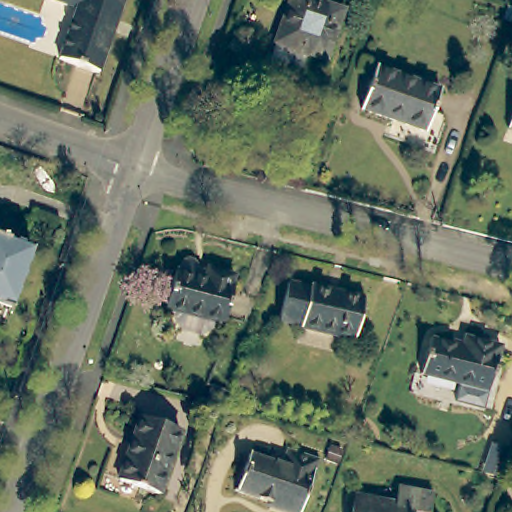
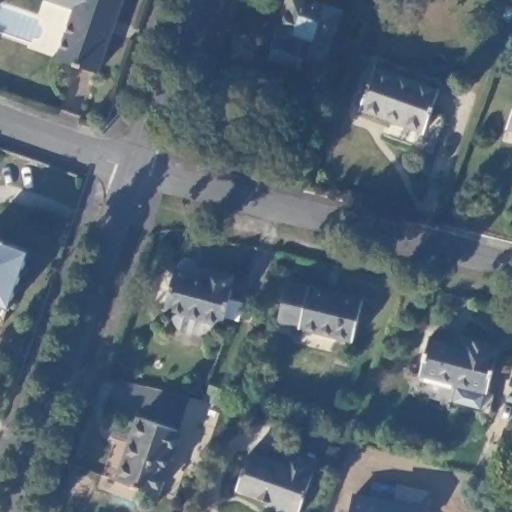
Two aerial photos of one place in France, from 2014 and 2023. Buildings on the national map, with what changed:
unchanged [(121,0),(96,75),(56,61),(73,9),(48,0),(121,0)]
unchanged [(287,0),(310,0),(344,12),(326,64),(306,56),(301,71),(268,59),(273,45),(271,43),(287,0)]
unchanged [(376,66),(440,90),(425,133),(361,110),(376,66)]
unchanged [(512,109),(512,132),(504,129),(512,109)]
unchanged [(32,249),(10,310),(0,306),(0,237),(32,249)]
unchanged [(221,318),(219,322),(216,321),(211,325),(199,332),(180,326),(172,314),(172,310),(166,309),(166,301),(178,259),(180,259),(184,253),(191,253),(193,255),(195,257),(196,260),(234,271),(231,280),(234,281),(224,319),(221,318)]
unchanged [(304,288),(304,286),(358,299),(348,341),(295,328),(296,326),(274,320),(282,283),(304,288)]
unchanged [(421,379),(431,342),(461,352),(464,341),(500,352),(484,412),(458,405),(462,391),(421,379)]
unchanged [(181,431),(157,495),(117,481),(140,416),(181,431)]
unchanged [(278,470),(284,454),(313,463),(297,512),(280,512),(232,496),(245,458),(278,470)]
unchanged [(396,502),(400,486),(432,493),(428,512),(352,512),(356,495),(396,502)]

